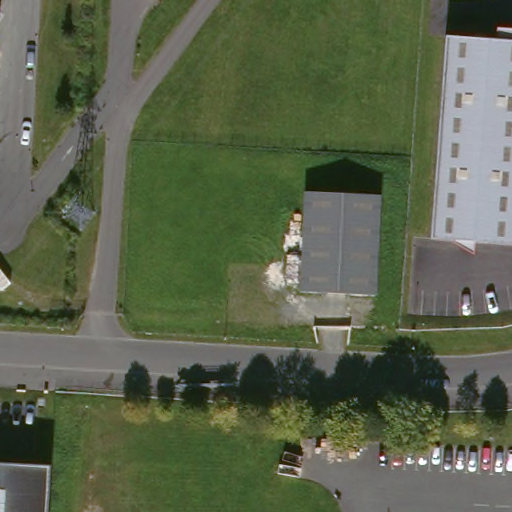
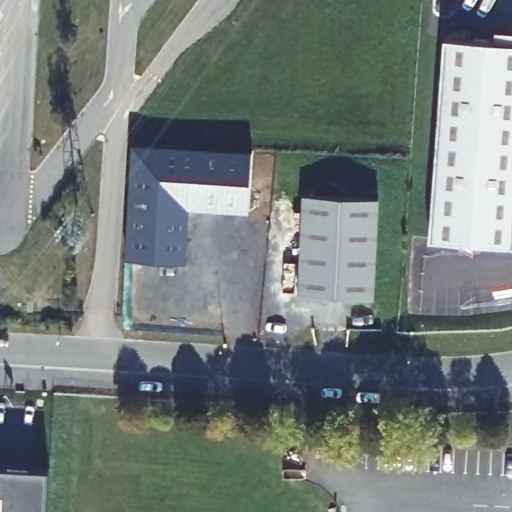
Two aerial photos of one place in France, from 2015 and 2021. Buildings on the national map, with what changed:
unchanged [(512,40),(512,243),(437,238),(448,35),(512,40)]
new [(132,147),(252,152),(249,214),(189,211),(186,266),(126,263),(132,147)]
unchanged [(376,198),(372,298),(297,294),(301,194),(376,198)]
unchanged [(49,471),(45,512),(0,512),(0,469),(49,471)]

